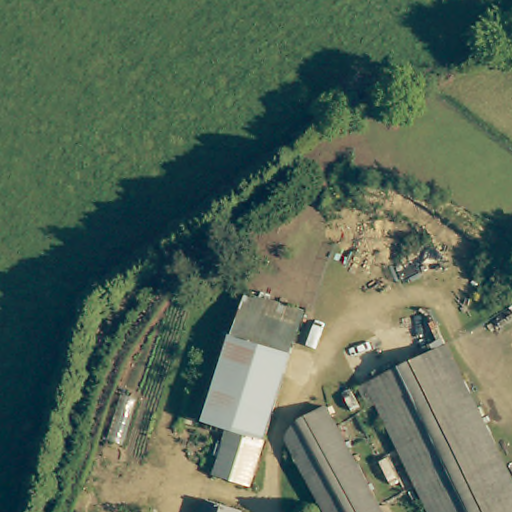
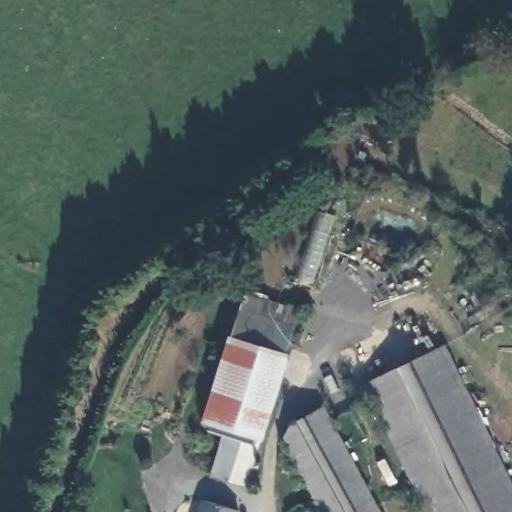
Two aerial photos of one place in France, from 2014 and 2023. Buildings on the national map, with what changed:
unchanged [(240,329),(253,287),(308,304),(295,346),(240,329)]
unchanged [(232,418),(215,413),(240,329),(295,346),(267,430),(232,418)]
unchanged [(512,512),(430,512),(392,438),(377,407),(372,409),(361,388),(386,376),(446,346),(512,479),(512,512)]
unchanged [(290,438),(299,420),(327,406),(384,512),(330,512),(290,438)]
unchanged [(252,476),(217,465),(232,418),(267,430),(252,476)]
unchanged [(209,489),(244,501),(240,512),(201,512),(209,489)]

